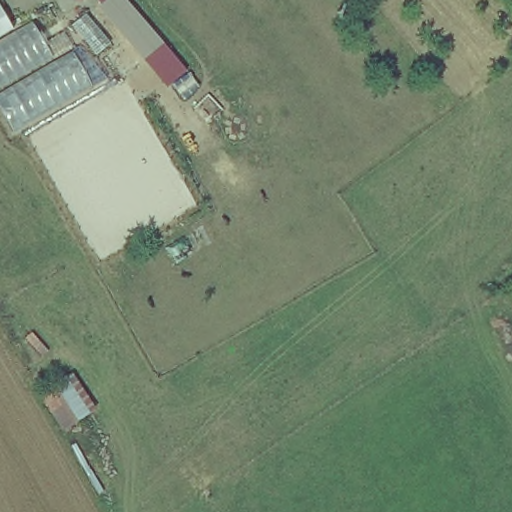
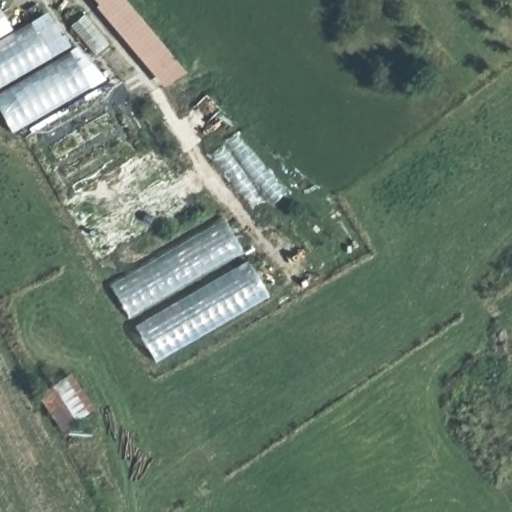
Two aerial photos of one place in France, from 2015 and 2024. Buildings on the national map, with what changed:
unchanged [(0,34),(0,0),(12,26),(0,34)]
demolished [(97,9),(108,0),(125,0),(163,44),(143,61),(97,9)]
new [(142,56),(100,2),(103,0),(120,0),(158,45),(183,75),(166,87),(142,56)]
unchanged [(0,90),(0,44),(33,25),(56,56),(0,90)]
unchanged [(0,110),(0,96),(77,50),(100,86),(16,135),(0,110)]
new [(222,216),(242,251),(127,317),(108,283),(222,216)]
new [(245,258),(266,293),(155,361),(135,325),(245,258)]
unchanged [(63,433),(42,395),(71,373),(95,408),(63,433)]

